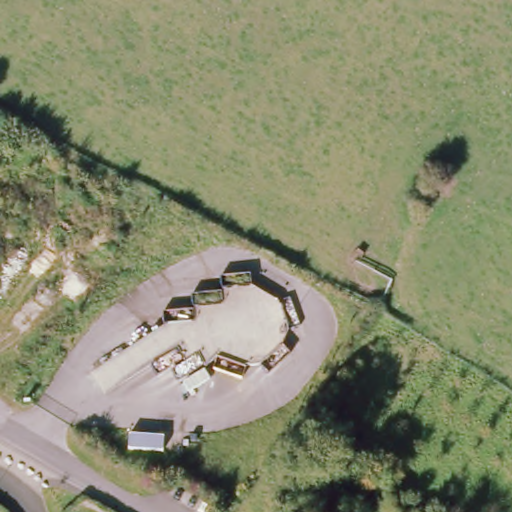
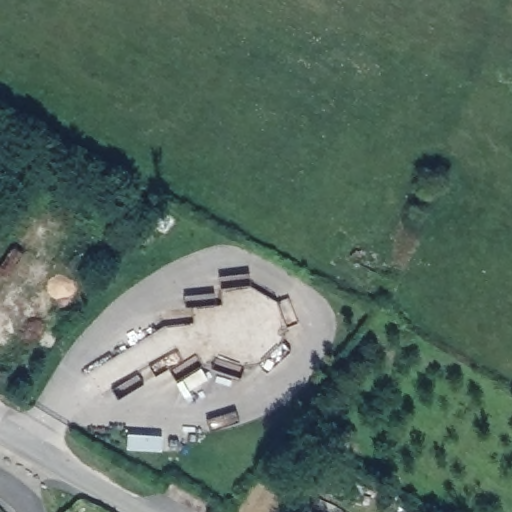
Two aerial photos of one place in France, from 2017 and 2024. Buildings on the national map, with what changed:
unchanged [(139,458),(140,443),(175,443),(175,459),(152,458),(139,458)]

